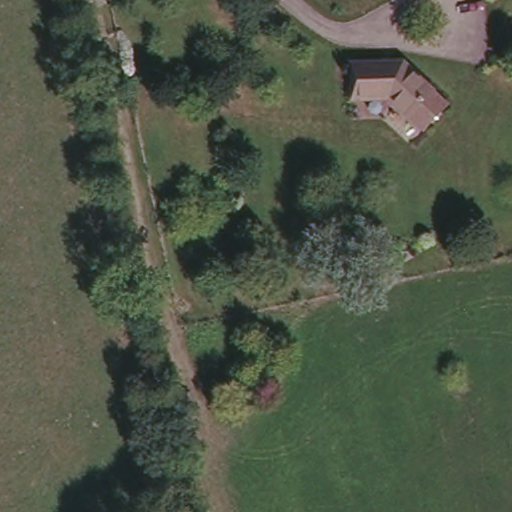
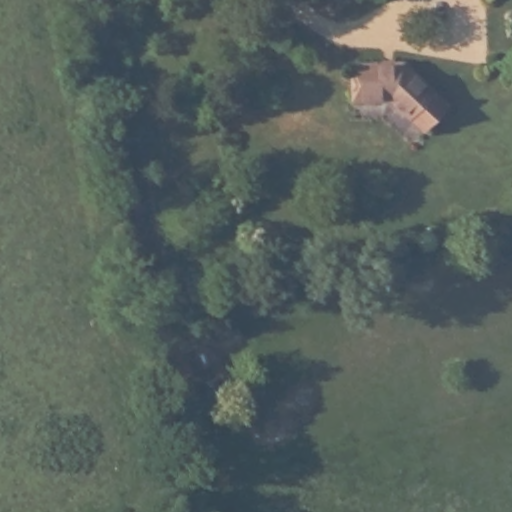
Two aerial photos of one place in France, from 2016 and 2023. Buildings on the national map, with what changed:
unchanged [(400,58),(449,103),(424,128),(388,94),(351,97),(348,63),(400,58)]

